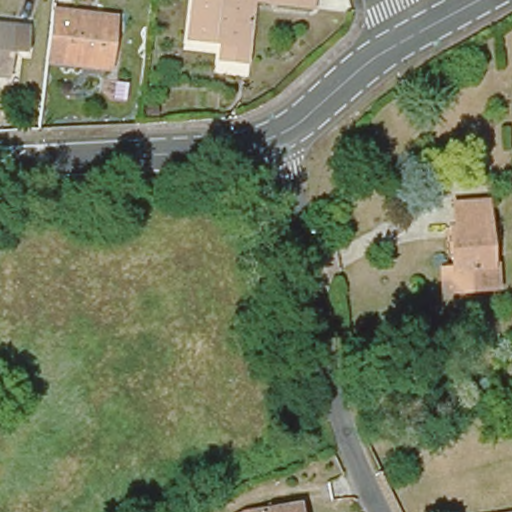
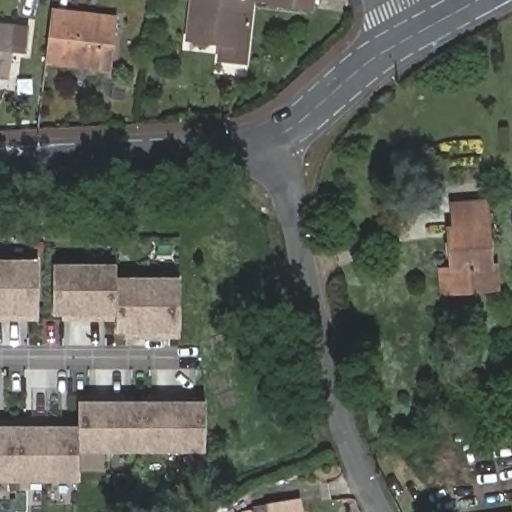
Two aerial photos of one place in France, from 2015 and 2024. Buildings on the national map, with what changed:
unchanged [(186,36),(191,0),(251,0),(245,44),(186,36)]
unchanged [(260,0),(265,0),(265,1),(260,0)]
unchanged [(116,20),(110,70),(46,62),(52,12),(116,20)]
unchanged [(36,26),(34,50),(18,49),(16,72),(0,70),(0,22),(21,25),(36,26)]
unchanged [(486,291),(448,293),(446,270),(453,269),(451,229),(456,227),(455,206),(488,203),(492,269),(494,290),(486,291)]
new [(37,320),(0,320),(0,257),(39,257),(38,314),(37,320)]
new [(117,276),(117,313),(117,320),(64,320),(64,313),(53,313),(54,262),(117,262),(117,276)]
new [(117,276),(181,276),(179,332),(179,338),(127,338),(127,331),(116,331),(117,320),(117,313),(117,276)]
new [(205,400),(205,452),(77,452),(78,425),(78,399),(205,400)]
new [(79,482),(0,482),(0,424),(78,425),(77,452),(79,482)]
unchanged [(257,503),(297,497),(299,512),(242,512),(247,511),(252,511),(251,503),(257,503)]

